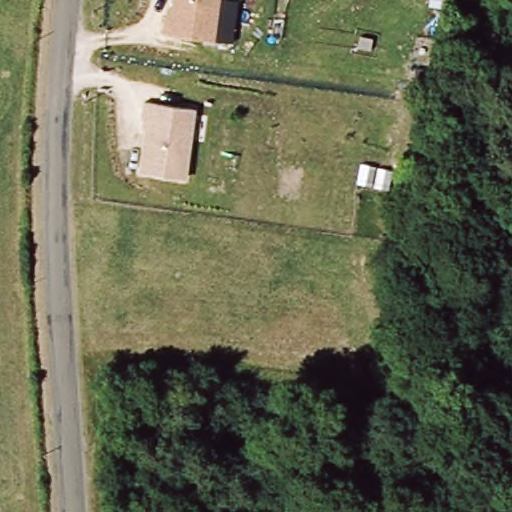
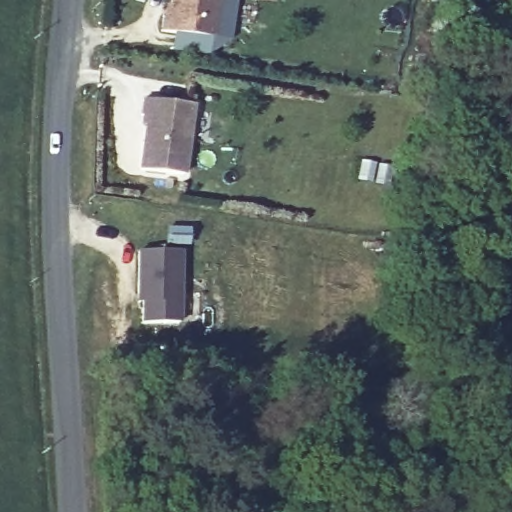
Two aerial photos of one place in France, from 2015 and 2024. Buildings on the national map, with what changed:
unchanged [(213,37),(161,31),(163,0),(172,1),(172,0),(217,0),(213,37)]
unchanged [(193,104),(184,175),(135,168),(144,98),(193,104)]
new [(136,255),(179,255),(178,325),(139,323),(139,304),(135,304),(136,255)]

